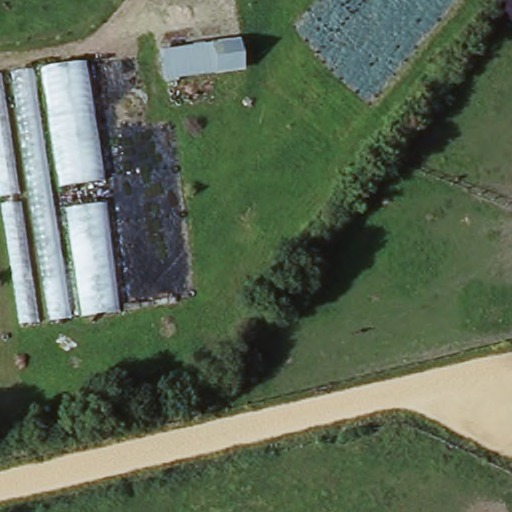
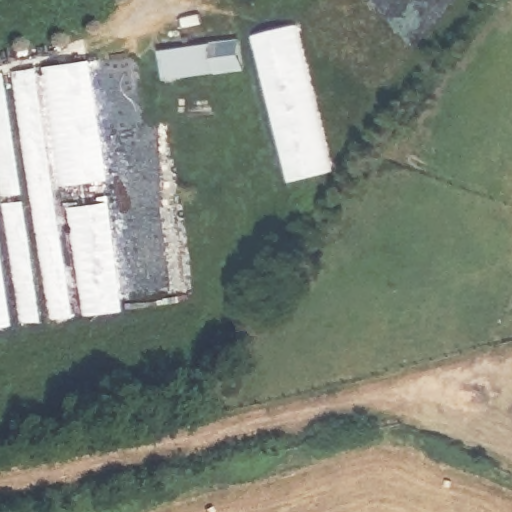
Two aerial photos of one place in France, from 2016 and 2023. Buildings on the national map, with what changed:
new [(299,29),(332,174),(289,184),(253,40),(299,29)]
unchanged [(241,44),(243,70),(165,75),(163,48),(241,44)]
unchanged [(19,323),(0,189),(0,73),(87,61),(120,311),(19,323)]
new [(0,329),(0,259),(10,328),(0,329)]

